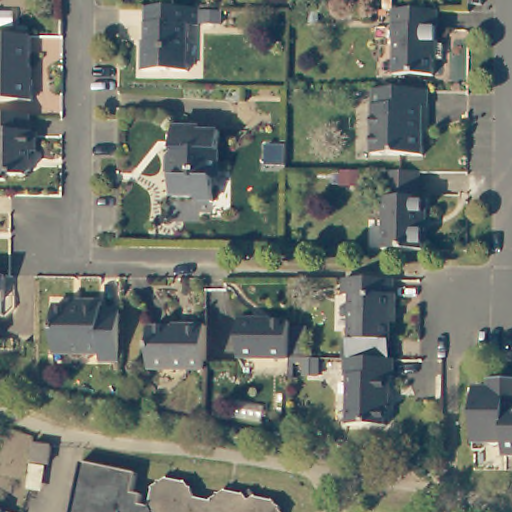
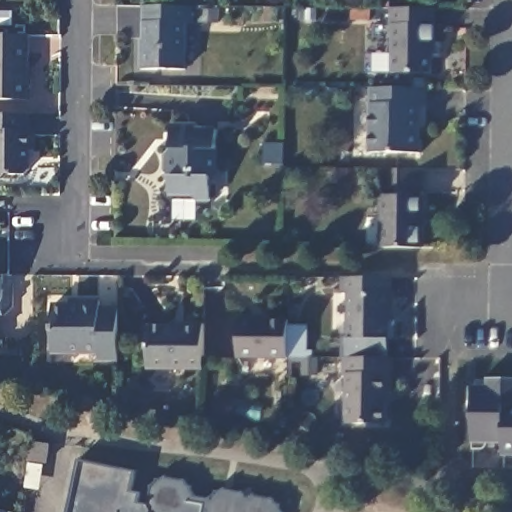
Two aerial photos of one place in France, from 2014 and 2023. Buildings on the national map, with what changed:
unchanged [(466,3),(467,0),(480,0),(480,3),(466,3)]
unchanged [(186,20),(186,66),(141,65),(141,48),(144,48),(144,2),(196,2),(196,20),(186,20)]
unchanged [(217,19),(200,19),(200,6),(218,6),(217,19)]
unchanged [(391,26),(391,9),(435,10),(435,43),(440,43),(440,58),(431,58),(431,74),(392,74),(393,26),(391,26)]
unchanged [(0,101),(0,36),(29,36),(29,80),(31,80),(31,101),(0,101)]
unchanged [(426,90),(425,107),(415,107),(415,129),(420,129),(420,155),(370,154),(371,89),(426,90)]
unchanged [(30,132),(30,151),(25,151),(25,170),(20,175),(5,175),(0,180),(0,116),(25,116),(25,132),(30,132)]
unchanged [(165,173),(165,167),(165,156),(171,150),(172,126),(198,126),(198,130),(217,131),(216,168),(216,171),(211,171),(211,201),(197,201),(192,196),(171,196),(171,179),(165,173)]
unchanged [(425,217),(421,217),(421,250),(392,249),(381,249),(382,197),(382,169),(404,169),(415,170),(415,197),(425,197),(425,217)]
unchanged [(391,294),(393,294),(393,312),(388,312),(388,340),(348,340),(348,295),(342,295),(342,279),(391,279),(391,294)]
unchanged [(48,306),(65,306),(65,301),(76,301),(95,301),(95,309),(114,309),(114,361),(94,361),(94,354),(47,354),(48,306)]
unchanged [(218,314),(239,314),(239,317),(268,318),(268,353),(217,353),(218,314)]
unchanged [(177,327),(177,325),(199,325),(198,370),(143,369),(144,327),(177,327)]
unchanged [(286,351),(270,351),(270,326),(287,325),(286,351)]
unchanged [(283,370),(283,353),(298,353),(298,370),(283,370)]
unchanged [(380,406),(380,426),(342,425),(342,375),(338,375),(339,359),(388,359),(387,376),(384,376),(384,394),(384,406),(380,406)]
unchanged [(474,387),(490,387),(490,381),(488,381),(488,379),(512,380),(512,457),(504,457),(504,444),(473,444),(473,420),(474,387)]
unchanged [(47,464),(29,461),(31,443),(50,446),(47,464)]
unchanged [(141,473),(137,493),(146,495),(145,504),(152,506),(156,488),(162,484),(163,482),(165,482),(171,478),(189,482),(192,488),(195,488),(195,491),(199,497),(215,500),(221,497),(221,494),(224,494),(230,491),(248,494),(255,490),(258,497),(276,500),(280,506),(283,507),(282,509),(284,512),(74,512),(85,461),(141,473)]
unchanged [(25,493),(29,466),(42,468),(39,495),(25,493)]
unchanged [(0,512),(0,511),(3,512),(0,512)]

